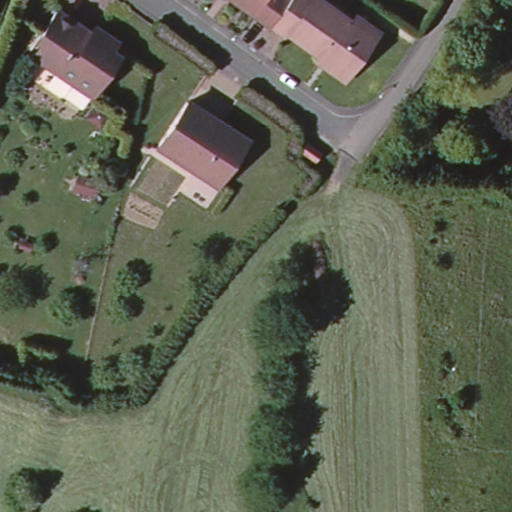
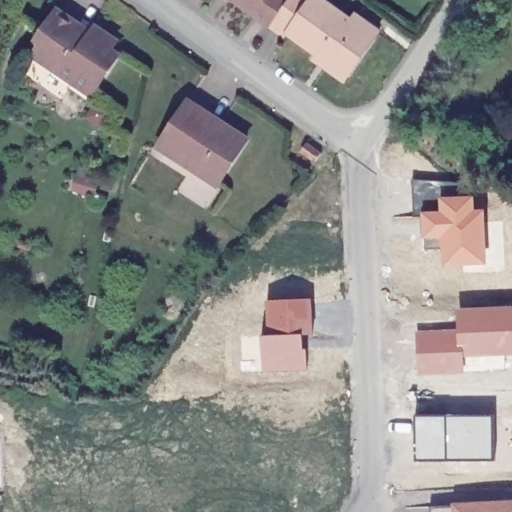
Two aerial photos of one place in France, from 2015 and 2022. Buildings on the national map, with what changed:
unchanged [(293,36),(279,25),(262,13),(244,0),(329,0),(359,21),(363,16),(387,33),(383,39),(354,80),(333,65),(323,58),(327,53),(296,32),(293,36)]
unchanged [(94,36),(98,30),(120,45),(114,53),(122,59),(95,97),(32,55),(60,13),(80,26),(94,36)]
unchanged [(210,115),(232,129),(237,132),(251,141),(231,172),(222,187),(180,160),(162,149),(189,108),(192,104),(210,115)]
unchanged [(310,144),(309,146),(318,153),(314,159),(304,151),(302,152),(298,148),(305,140),(310,144)]
new [(486,183),(484,267),(442,267),(439,237),(420,237),(421,216),(412,216),(412,181),(486,183)]
new [(313,300),(313,337),(307,339),(308,371),(265,372),(267,301),(313,300)]
new [(455,308),(512,308),(512,356),(464,357),(464,373),(417,373),(417,335),(457,330),(455,308)]
new [(492,418),(494,460),(414,461),(414,417),(492,418)]
new [(2,488),(0,488),(0,451),(2,488)]
new [(430,509),(512,505),(512,512),(430,512),(430,509)]

